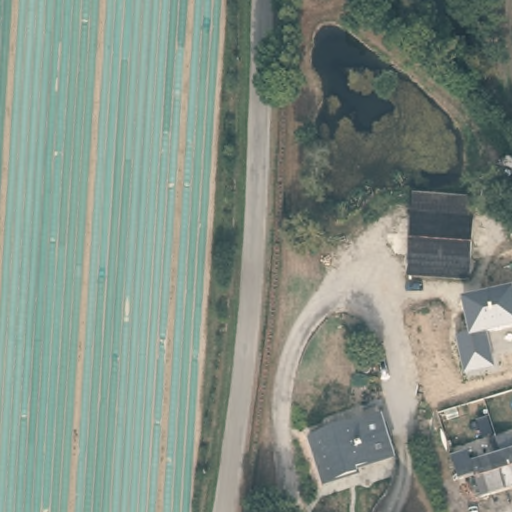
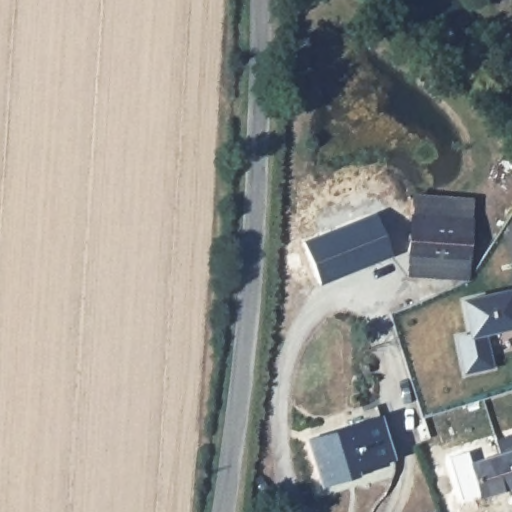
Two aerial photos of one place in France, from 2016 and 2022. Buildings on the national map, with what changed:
unchanged [(412,234),(415,194),(475,197),(473,237),(412,234)]
new [(322,285),(303,241),(375,212),(395,257),(322,285)]
unchanged [(411,277),(411,261),(412,242),(412,234),(473,237),(472,245),(471,264),(470,280),(411,277)]
unchanged [(487,335),(495,368),(463,376),(455,338),(470,335),(462,300),(512,291),(512,329),(487,335)]
unchanged [(392,458),(356,471),(355,476),(321,487),(308,442),(379,417),(392,458)]
unchanged [(470,462),(512,449),(512,490),(481,501),(473,480),(457,486),(445,456),(465,451),(470,462)]

